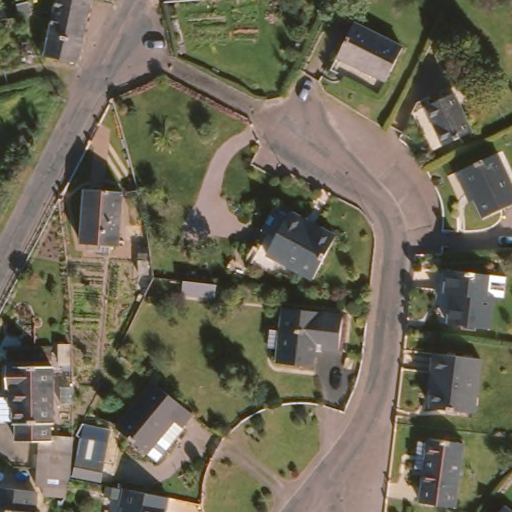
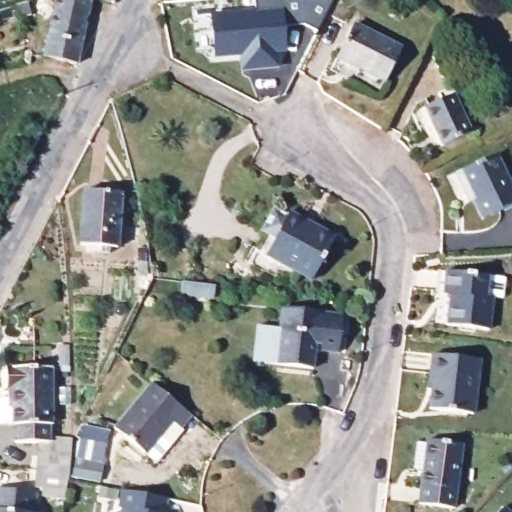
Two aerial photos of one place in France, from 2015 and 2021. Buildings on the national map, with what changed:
unchanged [(19,11),(17,11),(15,0),(29,0),(31,8),(19,11)]
unchanged [(42,50),(52,0),(86,0),(74,59),(41,52),(42,50)]
new [(306,24),(285,26),(287,51),(278,53),(280,68),(241,71),(240,56),(216,56),(212,10),(256,7),(255,0),(334,0),(319,30),(306,24)]
unchanged [(356,23),(403,49),(382,84),(335,59),(356,23)]
unchanged [(453,86),(472,130),(444,142),(425,98),(453,86)]
unchanged [(512,186),(512,202),(483,214),(472,190),(466,189),(457,168),(497,153),(512,186)]
unchanged [(122,193),(117,245),(77,239),(83,188),(122,193)]
unchanged [(262,232),(276,207),(288,214),(291,210),(337,237),(312,283),(266,257),(275,239),(262,232)]
unchanged [(437,312),(440,286),(426,284),(430,261),(477,269),(500,274),(497,295),(487,294),(483,320),(437,312)]
unchanged [(181,274),(197,277),(196,293),(165,288),(167,272),(181,274)]
unchanged [(344,304),(340,340),(317,337),(315,355),(277,350),(286,295),(344,304)]
unchanged [(53,344),(54,365),(44,364),(44,344),(53,344)]
unchanged [(480,354),(473,408),(428,401),(434,366),(431,366),(434,348),(480,354)]
unchanged [(49,370),(52,430),(49,431),(50,449),(17,450),(16,418),(11,418),(11,415),(0,415),(0,391),(5,391),(5,372),(49,370)]
unchanged [(153,459),(144,450),(113,422),(152,379),(191,411),(179,423),(182,426),(153,459)]
unchanged [(463,442),(456,505),(421,502),(425,472),(415,471),(418,441),(428,442),(428,438),(463,442)]
unchanged [(41,474),(42,454),(72,458),(70,476),(69,481),(66,498),(40,494),(41,474)]
unchanged [(36,493),(34,512),(0,512),(0,489),(36,493)]
unchanged [(122,495),(164,502),(162,512),(120,512),(122,495)]
unchanged [(512,512),(491,512),(500,502),(512,512)]

